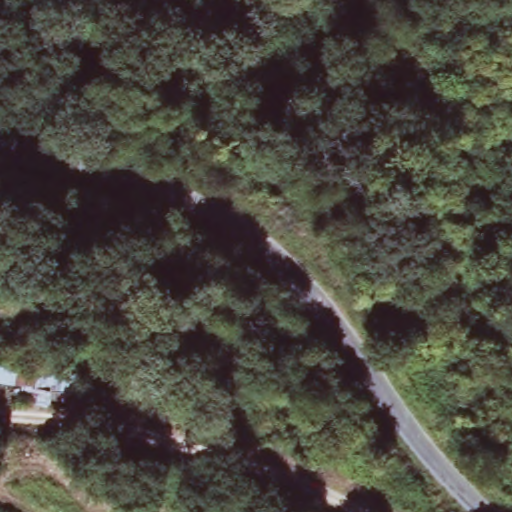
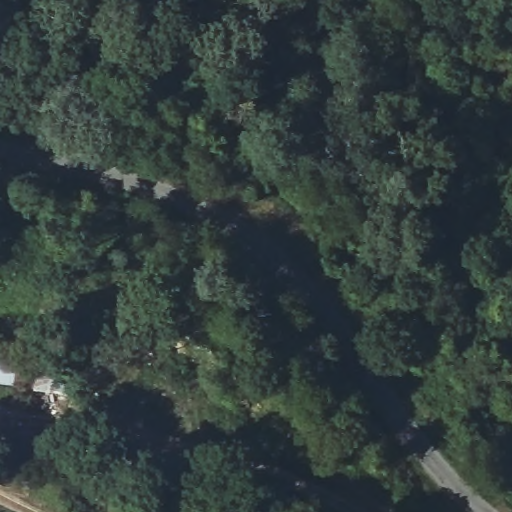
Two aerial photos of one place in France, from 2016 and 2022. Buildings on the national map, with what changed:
unchanged [(60,406),(24,402),(26,383),(0,380),(0,355),(65,364),(60,406)]

